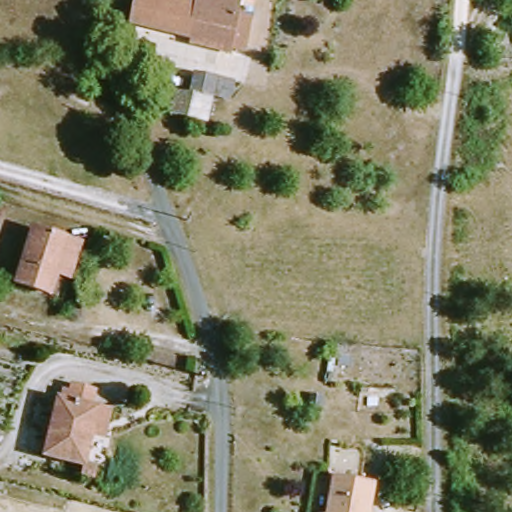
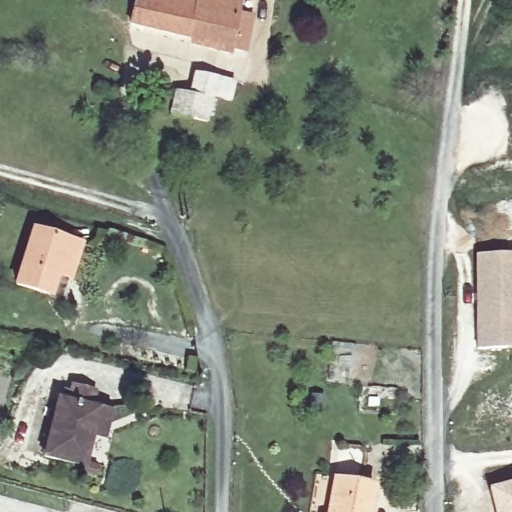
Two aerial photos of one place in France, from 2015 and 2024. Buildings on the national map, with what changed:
unchanged [(134,32),(138,0),(154,0),(196,7),(198,0),(235,0),(243,2),(241,15),(253,17),(248,52),(134,32)]
unchanged [(205,129),(170,118),(176,96),(190,99),(197,74),(218,80),(235,85),(230,107),(211,105),(209,124),(205,129)]
unchanged [(47,295),(40,296),(11,286),(31,228),(67,242),(47,295)]
new [(476,347),(472,255),(511,254),(512,281),(512,346),(505,346),(476,347)]
unchanged [(84,472),(44,463),(57,401),(60,401),(62,391),(73,393),(74,387),(94,392),(92,408),(110,412),(106,435),(105,444),(88,442),(84,470),(98,472),(96,486),(81,483),(84,472)]
unchanged [(330,479),(375,485),(373,512),(326,512),(330,479)]
new [(485,487),(512,480),(512,512),(492,512),(485,487)]

